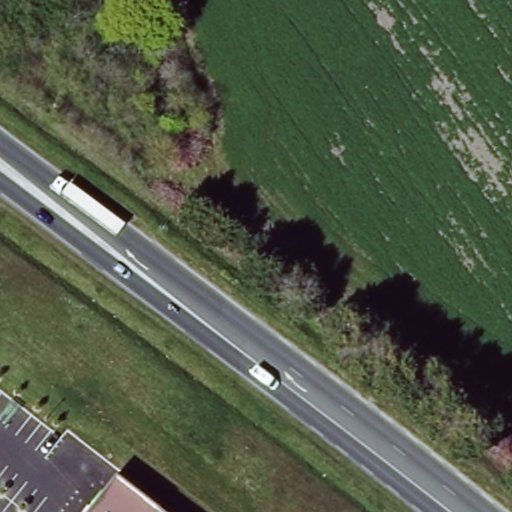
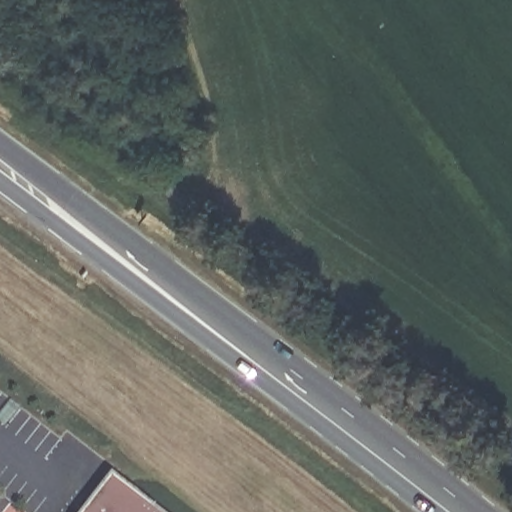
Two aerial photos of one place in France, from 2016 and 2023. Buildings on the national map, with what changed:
unchanged [(156,512),(88,512),(113,479),(156,512)]

